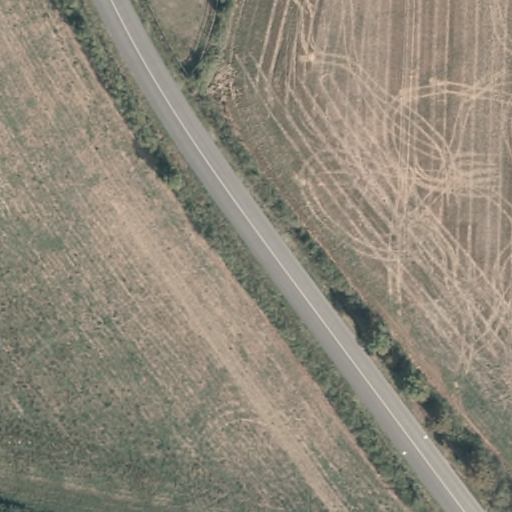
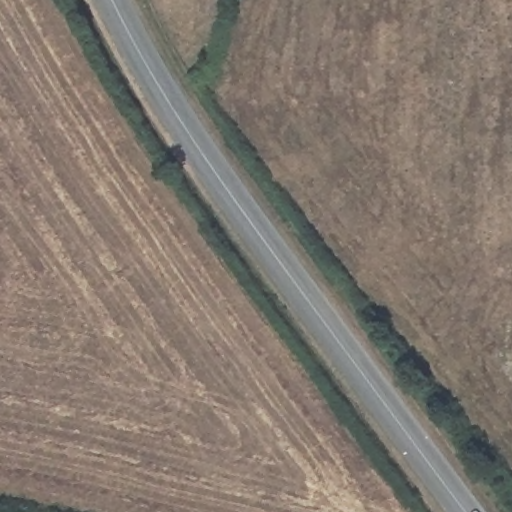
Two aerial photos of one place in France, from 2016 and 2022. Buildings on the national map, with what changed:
[]

